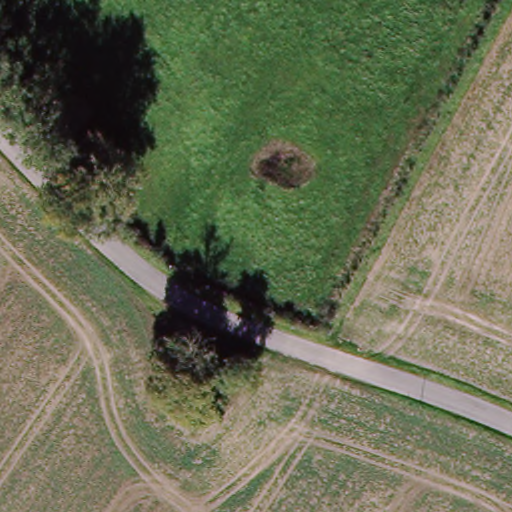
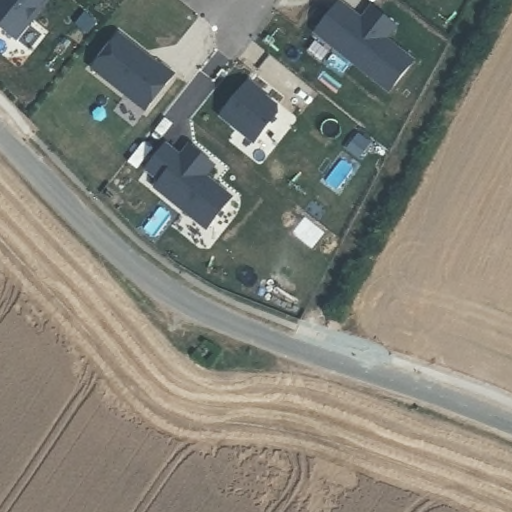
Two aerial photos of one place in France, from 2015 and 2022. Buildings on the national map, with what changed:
new [(0,21),(0,0),(44,0),(17,34),(0,21)]
new [(346,0),(362,12),(372,0),(373,0),(397,20),(387,32),(415,54),(390,86),(315,27),(336,0),(346,0)]
new [(120,27),(160,59),(162,57),(175,67),(146,104),(93,62),(120,27)]
new [(249,74),(263,85),(261,87),(276,99),(277,106),(255,135),(221,109),(249,74)]
new [(166,138),(181,150),(190,139),(215,158),(206,169),(233,190),(208,222),(156,182),(162,175),(147,163),(166,138)]
unchanged [(201,343),(211,351),(202,361),(192,352),(201,343)]

